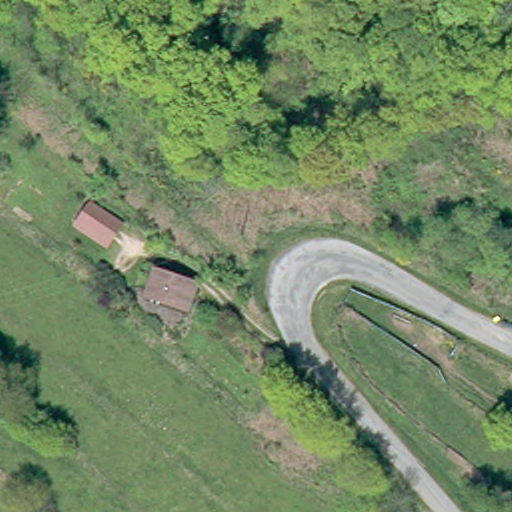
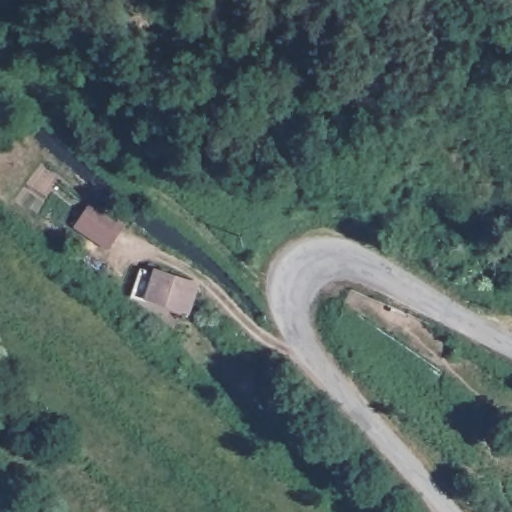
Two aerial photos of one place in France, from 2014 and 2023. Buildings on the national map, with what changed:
unchanged [(70,215),(82,200),(111,224),(98,239),(95,244),(66,220),(70,215)]
unchanged [(190,280),(184,302),(148,292),(154,270),(190,280)]

